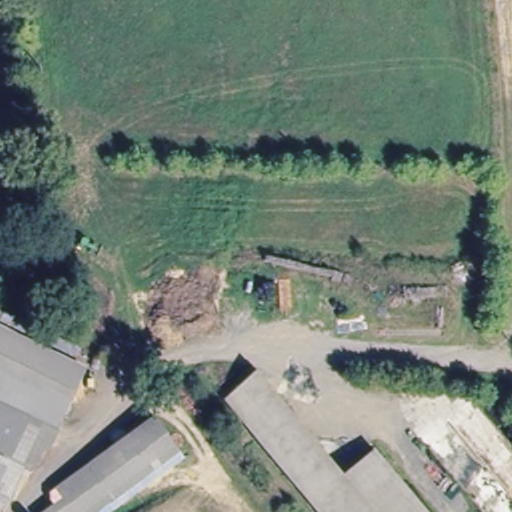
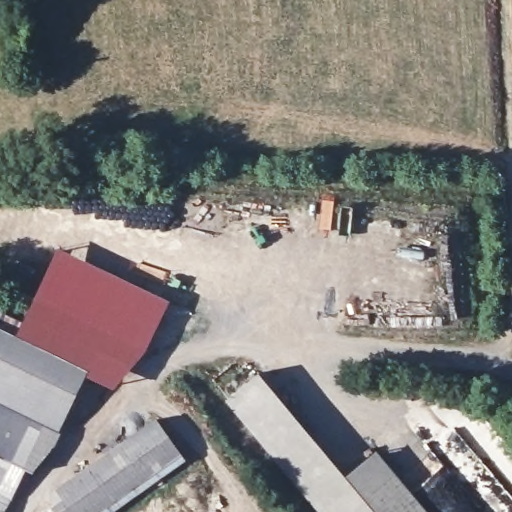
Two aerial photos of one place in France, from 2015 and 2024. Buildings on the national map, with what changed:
new [(33,299),(59,247),(168,299),(144,352),(33,299)]
new [(84,371),(15,338),(33,299),(144,352),(113,389),(82,375),(84,371)]
unchanged [(8,334),(84,371),(66,411),(60,430),(34,473),(26,469),(0,510),(0,331),(8,334)]
unchanged [(373,462),(410,512),(308,512),(227,402),(238,392),(261,374),(277,396),(343,485),(373,462)]
unchanged [(53,512),(69,500),(62,490),(158,419),(180,448),(96,512),(53,512)]

